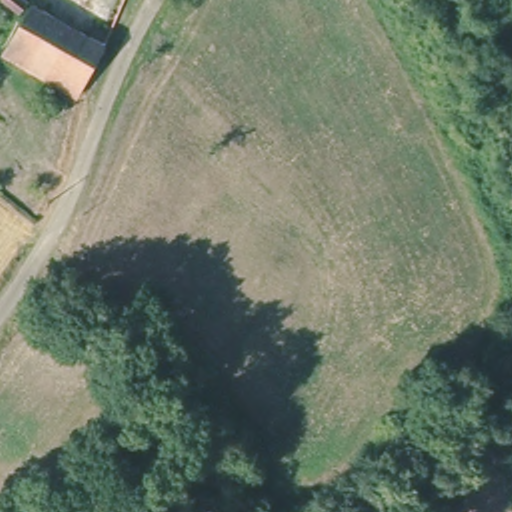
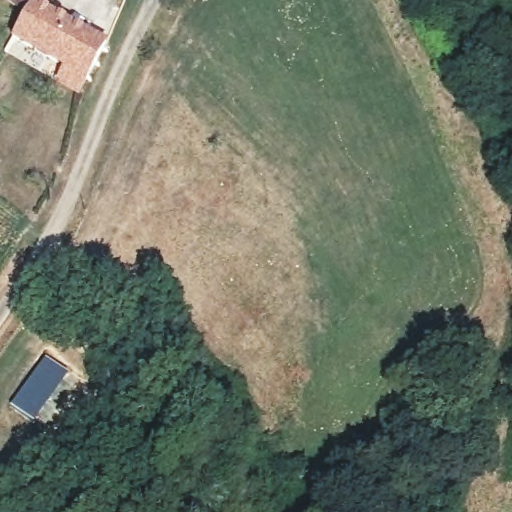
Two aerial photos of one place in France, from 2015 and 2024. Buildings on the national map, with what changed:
unchanged [(15,15),(0,3),(0,0),(20,0),(23,3),(15,15)]
unchanged [(6,54),(28,8),(86,39),(92,24),(106,32),(99,45),(75,94),(6,54)]
new [(45,358),(67,374),(31,424),(9,408),(45,358)]

